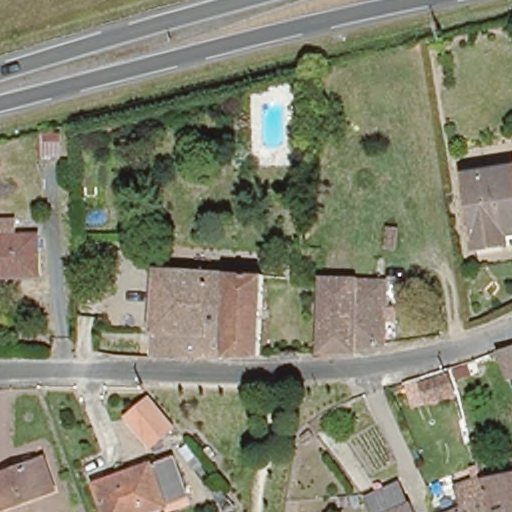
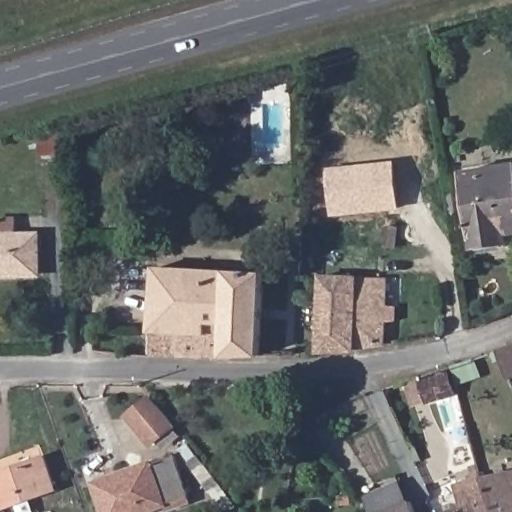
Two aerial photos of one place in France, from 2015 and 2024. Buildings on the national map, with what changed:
unchanged [(51,154),(35,155),(35,135),(50,134),(56,133),(56,154),(51,154)]
new [(332,217),(327,168),(396,160),(400,210),(332,217)]
unchanged [(477,250),(476,241),(467,185),(466,173),(512,167),(512,237),(509,237),(511,246),(477,250)]
unchanged [(41,275),(0,276),(0,235),(39,234),(41,275)]
unchanged [(157,268),(266,271),(264,351),(203,355),(154,354),(157,268)]
unchanged [(326,278),(361,278),(361,281),(399,282),(399,307),(397,307),(397,321),(387,321),(388,344),(384,345),(359,347),(358,351),(323,353),(326,278)]
unchanged [(512,378),(497,346),(512,342),(512,378)]
new [(422,382),(446,373),(452,392),(428,400),(413,406),(405,382),(420,376),(422,382)]
unchanged [(151,397),(177,428),(151,448),(124,417),(151,397)]
unchanged [(189,493),(138,512),(106,512),(97,490),(95,483),(115,475),(172,453),(189,493)]
unchanged [(55,487),(0,509),(0,472),(44,455),(55,487)]
unchanged [(478,466),(483,465),(483,468),(512,466),(512,512),(498,512),(479,467),(478,466)]
unchanged [(462,505),(455,483),(479,467),(498,512),(444,512),(462,505)]
unchanged [(360,495),(397,480),(407,500),(410,499),(416,512),(366,512),(360,495)]

